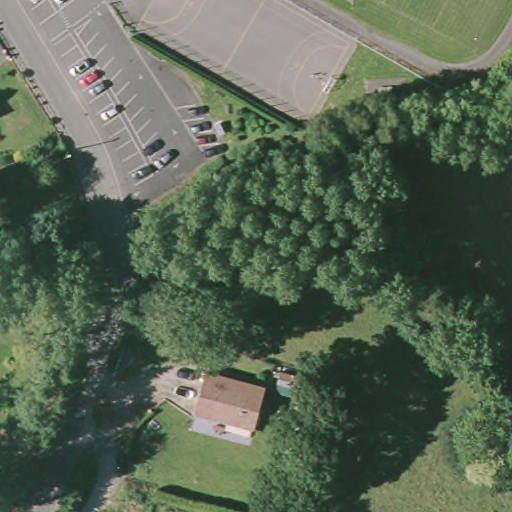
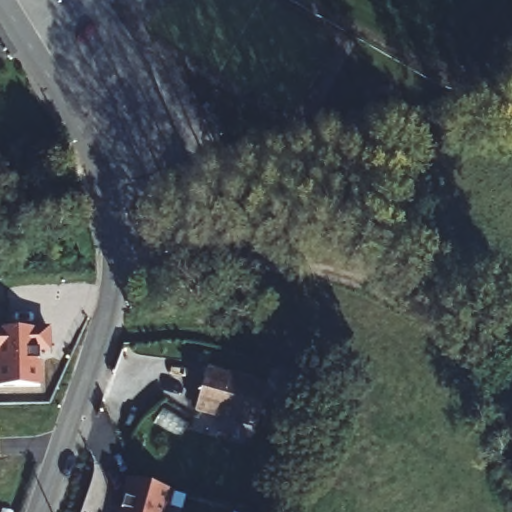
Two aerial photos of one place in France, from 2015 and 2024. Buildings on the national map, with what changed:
new [(0,329),(50,328),(52,352),(40,353),(41,386),(0,386),(0,329)]
unchanged [(253,426),(198,407),(210,374),(265,391),(253,426)]
new [(127,480),(173,493),(168,512),(119,512),(127,480)]
demolished [(151,502),(166,506),(164,512),(148,512),(151,502)]

